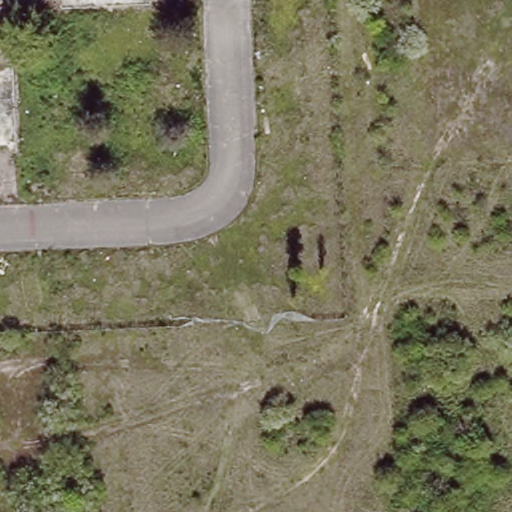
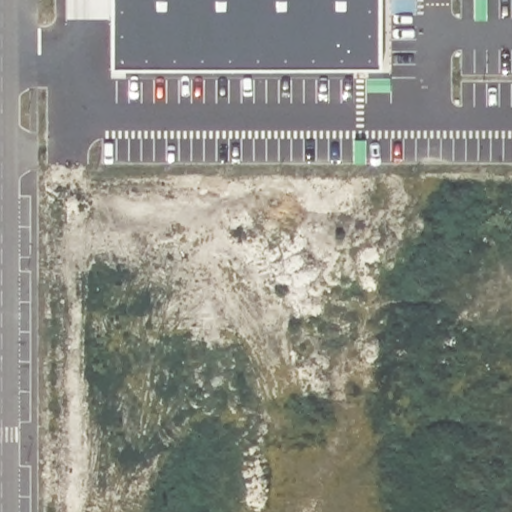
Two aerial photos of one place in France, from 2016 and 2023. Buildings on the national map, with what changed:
demolished [(153,2),(64,6),(64,0),(153,0),(153,2)]
new [(381,68),(111,68),(111,0),(381,0),(381,68)]
demolished [(13,59),(17,148),(0,149),(0,59),(13,59)]

